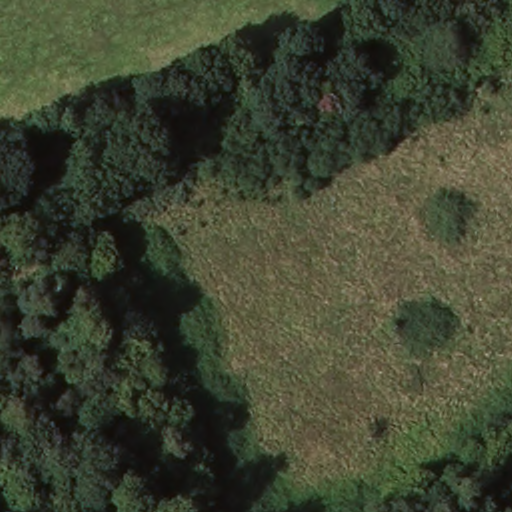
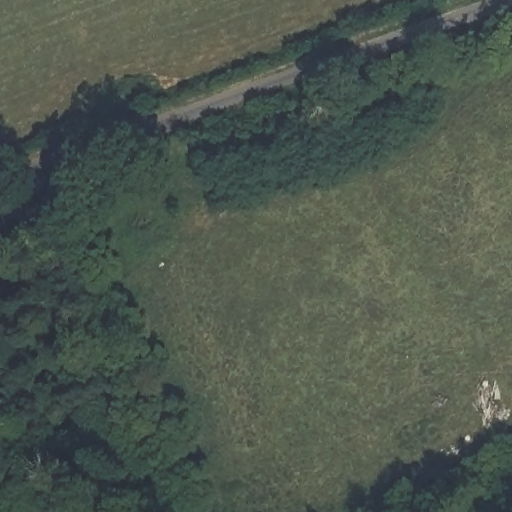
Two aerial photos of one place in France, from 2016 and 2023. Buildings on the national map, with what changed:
unchanged [(145,101),(152,117),(124,127),(119,110),(145,101)]

